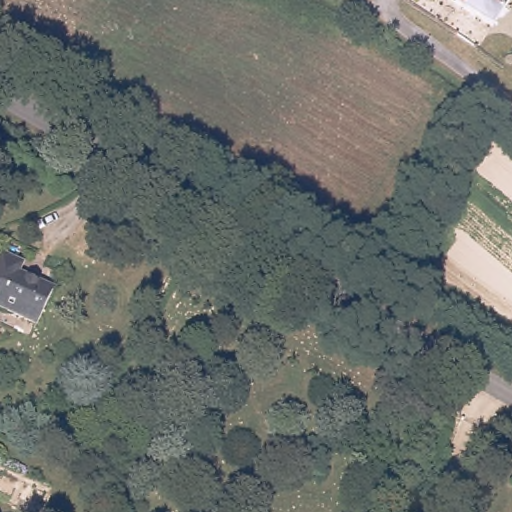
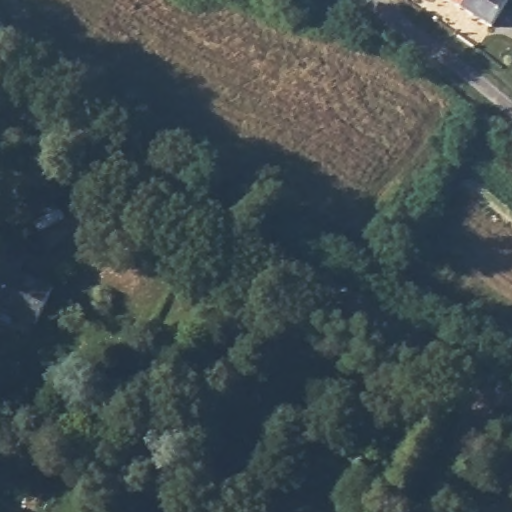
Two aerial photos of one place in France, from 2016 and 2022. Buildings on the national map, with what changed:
unchanged [(494,22),(457,0),(512,0),(512,32),(494,22)]
unchanged [(0,255),(1,251),(22,262),(19,270),(53,287),(36,323),(0,307),(0,255)]

